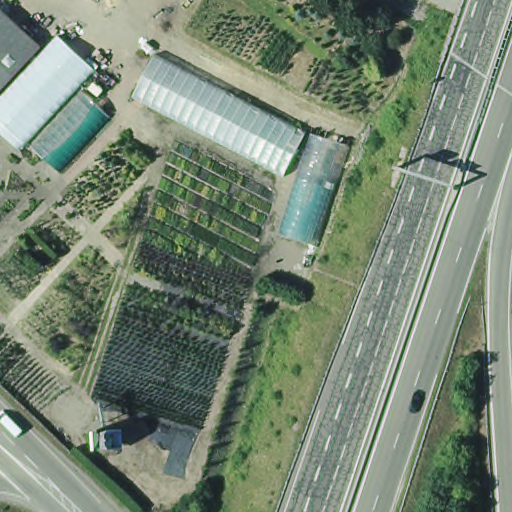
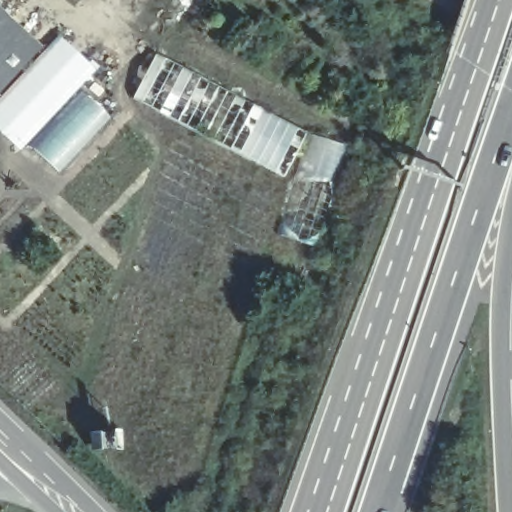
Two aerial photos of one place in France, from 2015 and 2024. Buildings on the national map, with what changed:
unchanged [(0,88),(0,9),(40,47),(0,88)]
unchanged [(76,91),(110,120),(60,174),(26,143),(20,149),(0,131),(0,97),(45,52),(81,85),(76,91)]
unchanged [(155,55),(272,115),(303,131),(283,176),(130,97),(151,53),(155,55)]
unchanged [(346,147),(315,244),(278,234),(310,134),(346,147)]

